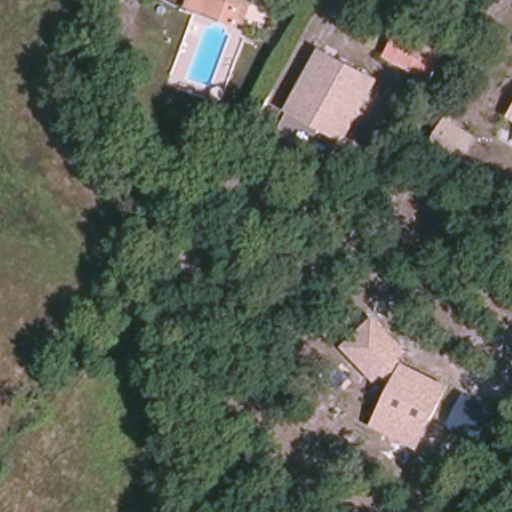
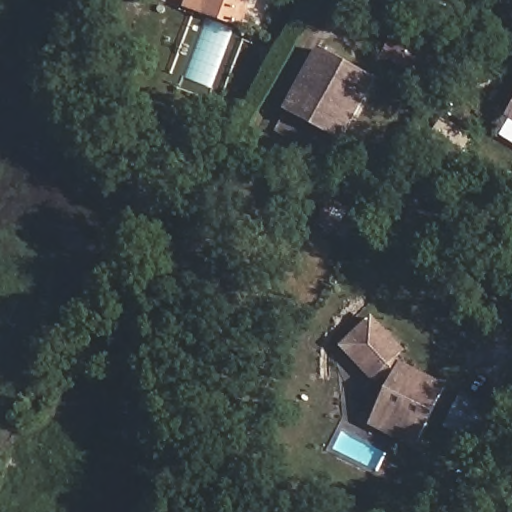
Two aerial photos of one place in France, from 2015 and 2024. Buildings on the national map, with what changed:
unchanged [(190,0),(254,0),(247,25),(188,7),(190,0)]
unchanged [(406,39),(437,54),(426,77),(395,61),(406,39)]
unchanged [(329,128),(292,109),(310,73),(321,49),(336,57),(376,77),(360,110),(347,136),(329,128)]
unchanged [(512,105),(512,115),(508,113),(512,105)]
unchanged [(457,159),(430,138),(445,115),(475,138),(457,159)]
unchanged [(417,449),(370,425),(389,384),(382,378),(377,384),(341,345),(374,314),(409,352),(399,360),(401,362),(450,387),(417,449)]
unchanged [(474,439),(445,424),(463,390),(492,406),(474,439)]

